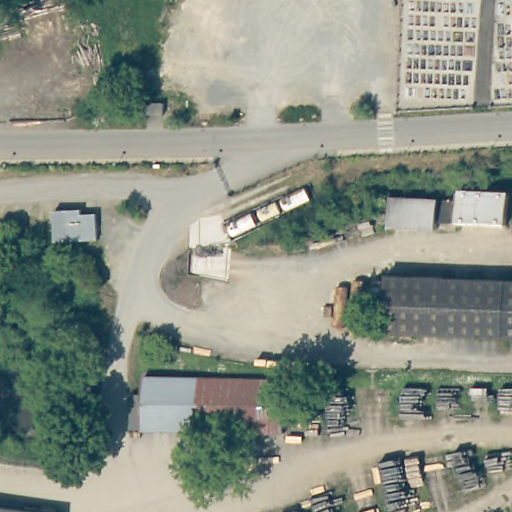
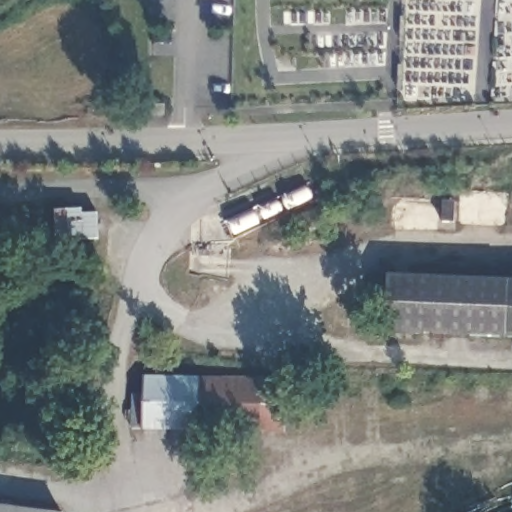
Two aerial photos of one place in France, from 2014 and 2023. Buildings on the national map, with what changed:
unchanged [(462,187),(497,188),(497,223),(461,222),(462,191),(462,187)]
unchanged [(387,199),(437,200),(436,230),(387,229),(387,199)]
unchanged [(56,241),(55,210),(82,208),(82,213),(97,213),(99,239),(56,241)]
unchanged [(512,338),(387,334),(388,279),(512,282),(512,338)]
unchanged [(262,433),(143,431),(145,380),(263,381),(262,433)]
unchanged [(53,512),(0,512),(0,505),(53,512)]

